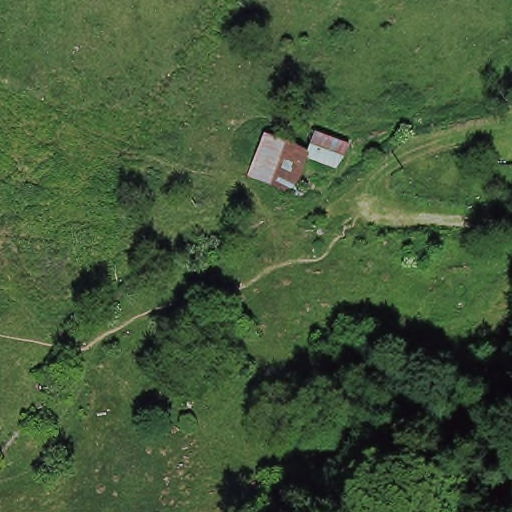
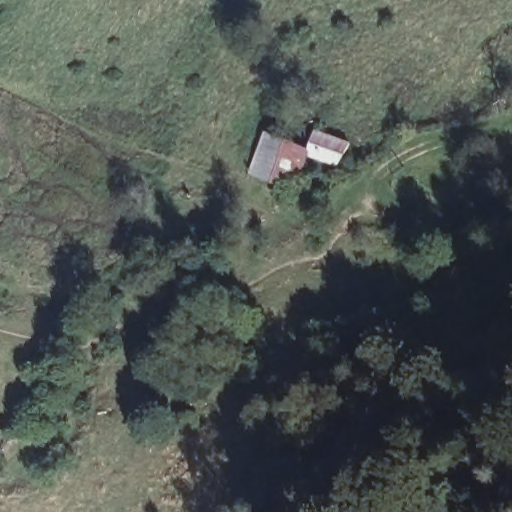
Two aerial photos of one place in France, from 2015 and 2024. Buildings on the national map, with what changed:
unchanged [(270,127),(313,146),(321,125),(351,138),(340,161),(312,151),(298,187),(255,166),(270,127)]

